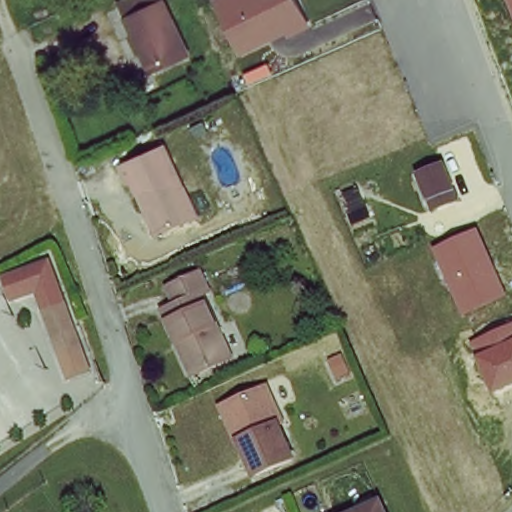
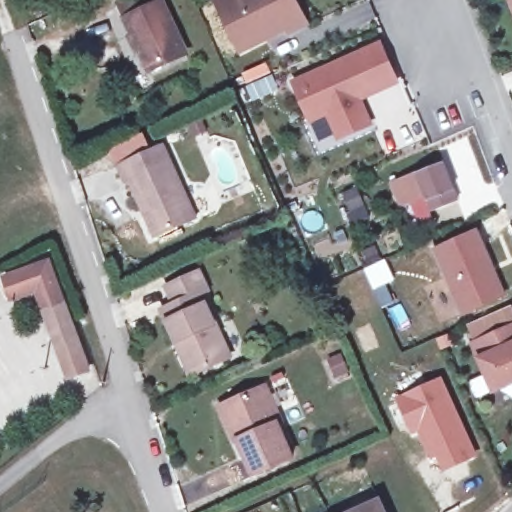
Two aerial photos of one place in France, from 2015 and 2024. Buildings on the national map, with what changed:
unchanged [(150,69),(116,3),(121,0),(158,0),(186,51),(150,69)]
unchanged [(306,24),(288,33),(286,28),(244,49),(219,1),(221,0),(294,0),(306,24)]
unchanged [(509,0),(512,0),(512,8),(509,0)]
new [(324,111),(307,119),(289,82),(361,49),(377,41),(394,79),(378,87),(354,97),(357,104),(360,103),(368,122),(336,136),(327,117),(324,111)]
unchanged [(150,206),(137,179),(133,181),(125,165),(164,146),(198,217),(168,232),(163,234),(150,206)]
unchanged [(457,200),(441,207),(439,201),(424,208),(411,177),(444,162),(457,200)]
unchanged [(479,229),(511,298),(464,316),(435,249),(479,229)]
unchanged [(52,254),(91,369),(63,377),(35,294),(6,303),(0,286),(0,270),(52,254)]
unchanged [(221,294),(215,297),(240,357),(205,373),(176,314),(186,308),(179,293),(212,275),(221,294)]
unchanged [(494,394),(480,357),(471,342),(512,324),(512,386),(494,394)]
new [(442,375),(478,455),(440,472),(434,458),(428,460),(415,434),(411,436),(394,396),(442,375)]
unchanged [(287,418),(283,420),(298,458),(259,475),(244,439),(248,438),(232,404),(270,383),(287,418)]
unchanged [(382,512),(345,512),(374,496),(382,512)]

